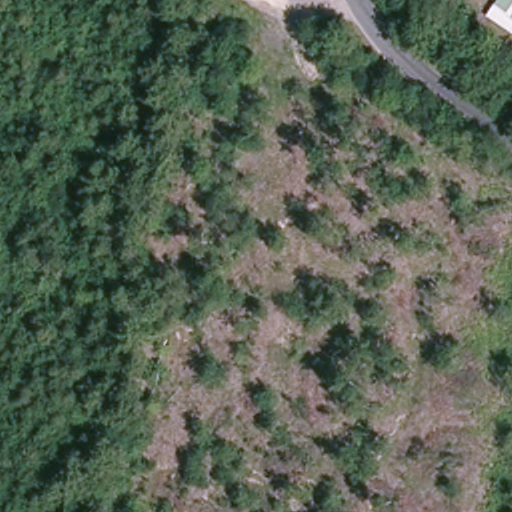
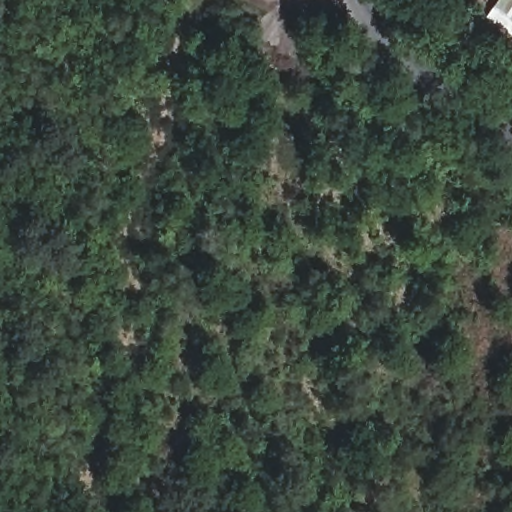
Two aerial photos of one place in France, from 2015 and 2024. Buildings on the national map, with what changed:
unchanged [(501,1),(501,0),(512,0),(512,8),(501,1)]

